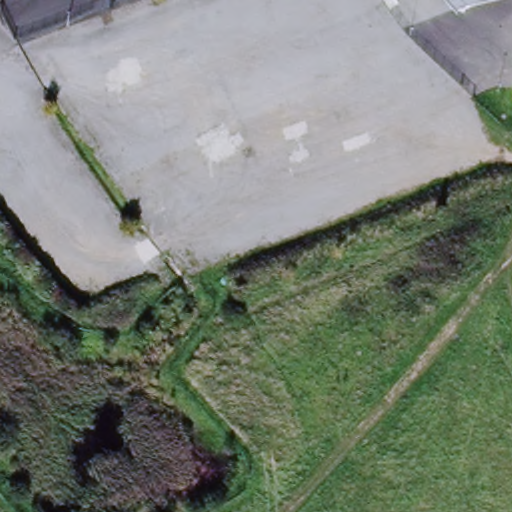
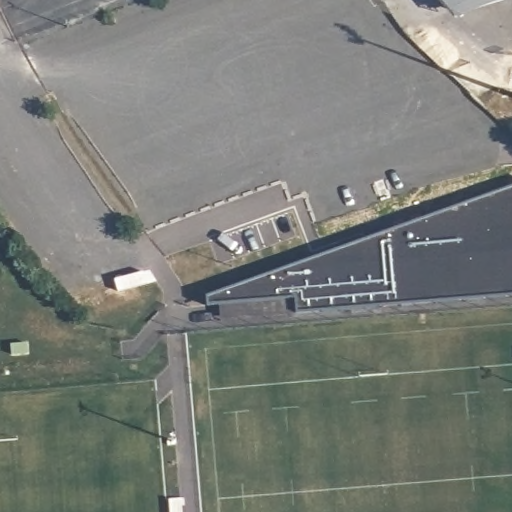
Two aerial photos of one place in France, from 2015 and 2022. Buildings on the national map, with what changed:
unchanged [(459,19),(444,0),(509,0),(459,19)]
new [(512,295),(295,315),(297,302),(206,307),(207,300),(512,191),(512,295)]

